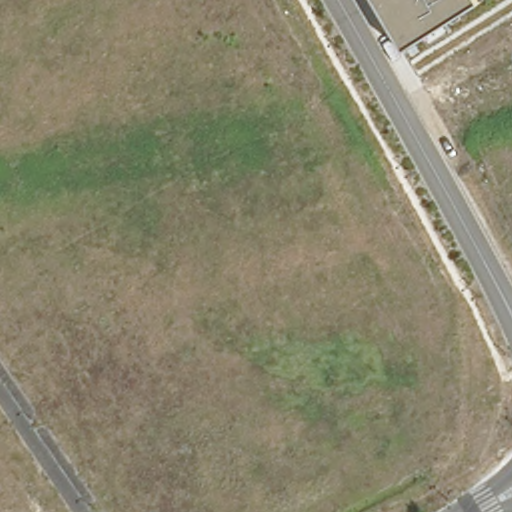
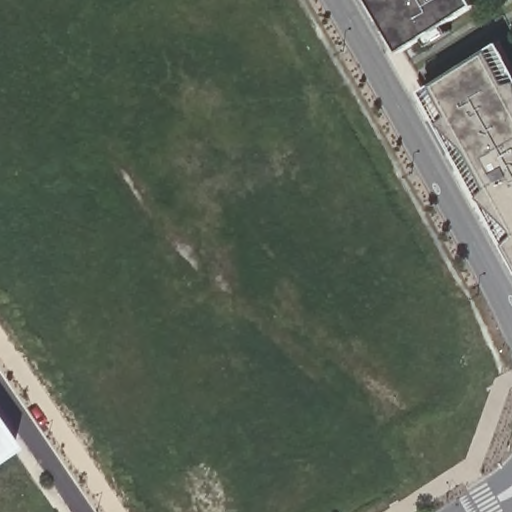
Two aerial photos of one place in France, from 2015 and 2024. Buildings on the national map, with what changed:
unchanged [(479,1),(447,22),(452,30),(431,44),(427,36),(405,51),(375,0),(479,0),(479,1)]
new [(502,41),(512,59),(512,249),(423,90),(502,41)]
new [(13,451),(0,460),(0,432),(13,451)]

